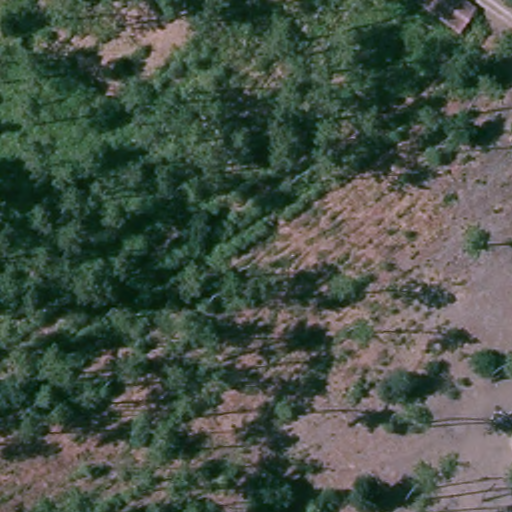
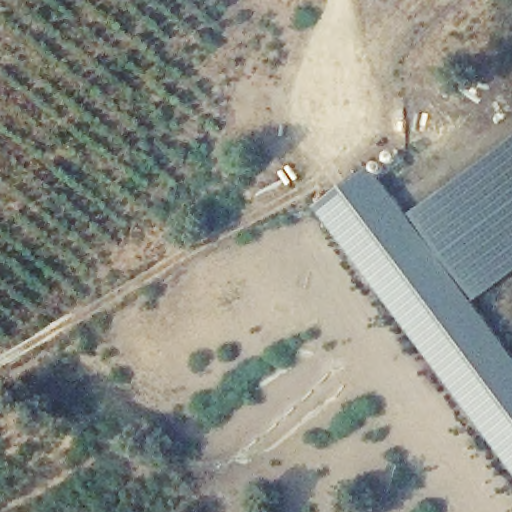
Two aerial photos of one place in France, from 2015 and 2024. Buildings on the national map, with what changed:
new [(405,217),(512,136),(512,274),(471,305),(405,217)]
new [(369,169),(512,359),(512,471),(315,209),(369,169)]

